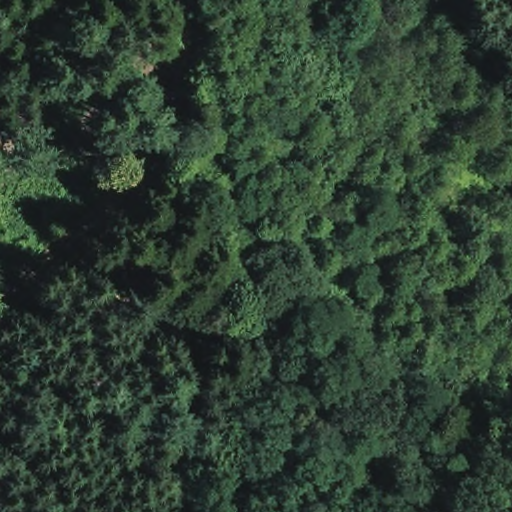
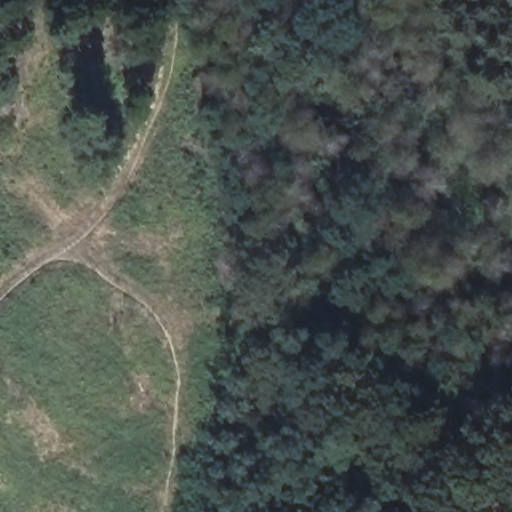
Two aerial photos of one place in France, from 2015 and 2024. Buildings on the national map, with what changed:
[]

